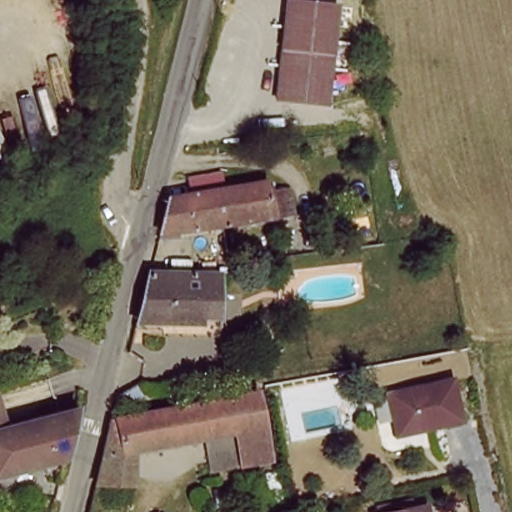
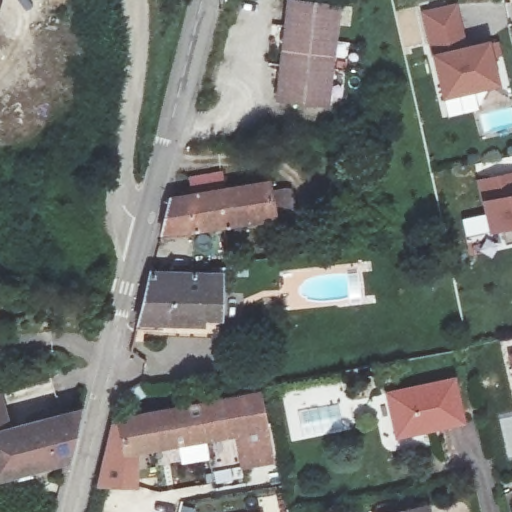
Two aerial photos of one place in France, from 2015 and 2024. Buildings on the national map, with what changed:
unchanged [(335,11),(329,110),(280,107),(286,8),(335,11)]
new [(455,9),(460,46),(481,44),(487,89),(432,96),(421,14),(455,9)]
unchanged [(167,200),(186,196),(183,180),(216,174),(220,189),(263,180),(265,186),(286,183),(291,211),(280,214),(157,240),(167,200)]
new [(512,224),(478,227),(474,179),(512,175),(512,224)]
unchanged [(221,276),(221,327),(135,328),(148,274),(221,276)]
new [(512,402),(504,355),(512,354),(512,402)]
unchanged [(451,381),(460,421),(394,435),(386,393),(451,381)]
unchanged [(208,440),(137,452),(141,482),(100,478),(117,412),(253,392),(270,461),(213,470),(208,440)]
unchanged [(0,428),(0,415),(3,427),(0,428)]
unchanged [(0,482),(0,435),(75,415),(62,468),(0,482)]
unchanged [(429,512),(402,512),(427,507),(429,512)]

